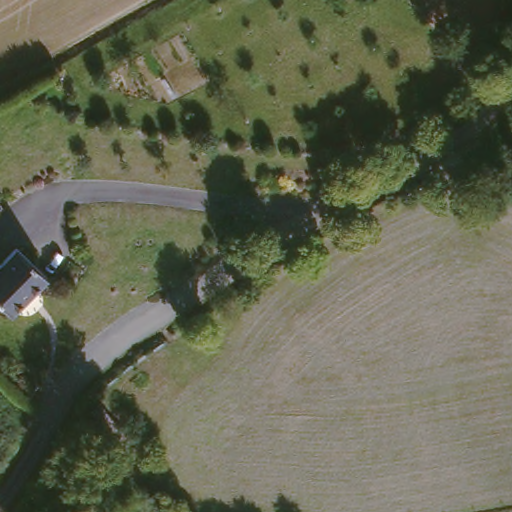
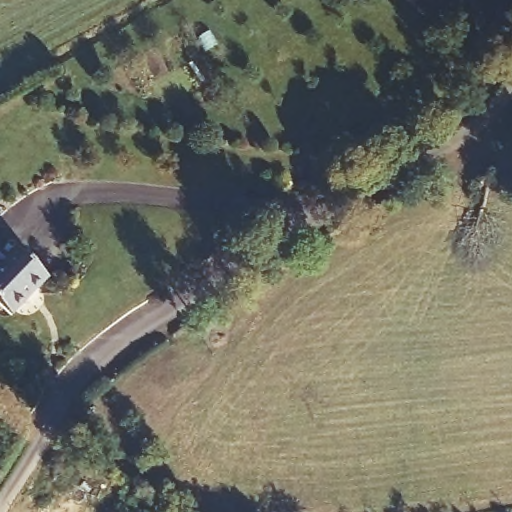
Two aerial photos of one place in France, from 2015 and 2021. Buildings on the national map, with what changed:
unchanged [(23,249),(51,282),(12,313),(0,298),(0,258),(4,263),(23,249)]

